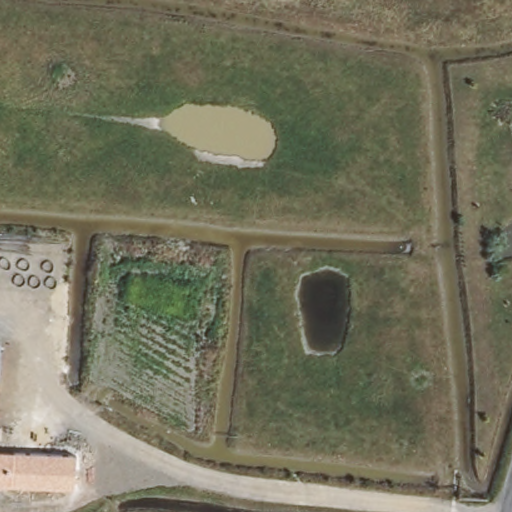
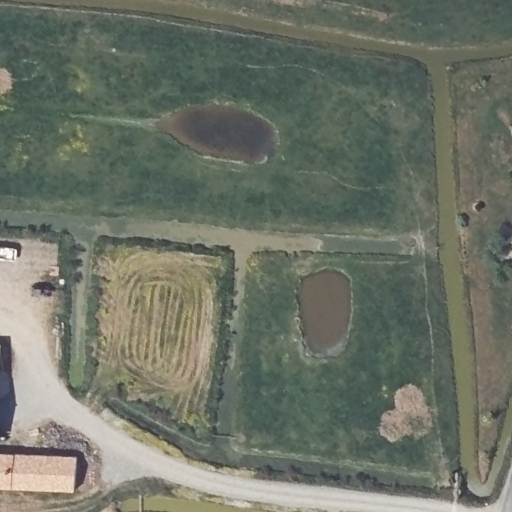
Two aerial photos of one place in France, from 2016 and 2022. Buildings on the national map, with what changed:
unchanged [(59,458),(57,497),(0,493),(0,456),(59,458)]

